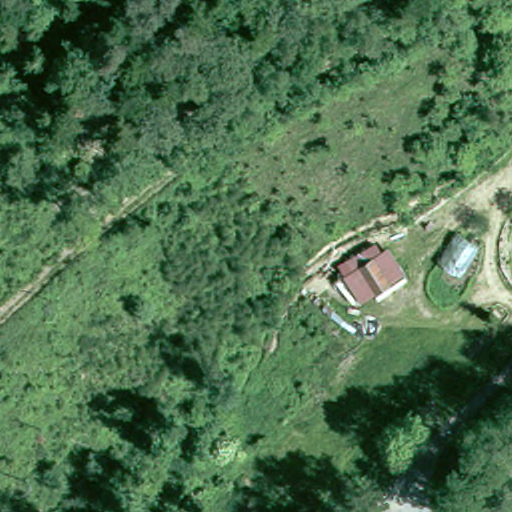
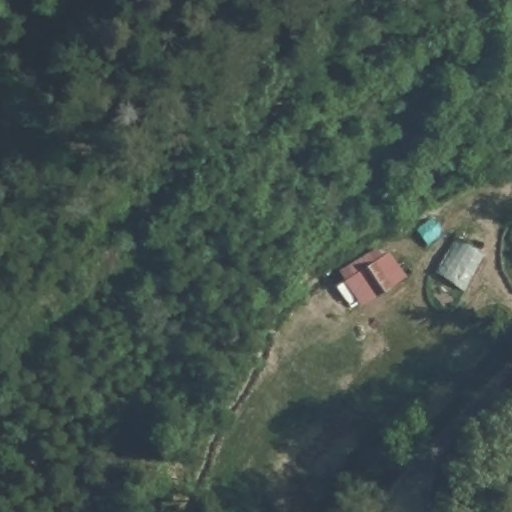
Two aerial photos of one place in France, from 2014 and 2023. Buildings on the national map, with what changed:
unchanged [(377,244),(406,274),(360,304),(338,268),(377,244)]
unchanged [(492,453),(512,437),(512,473),(492,453)]

